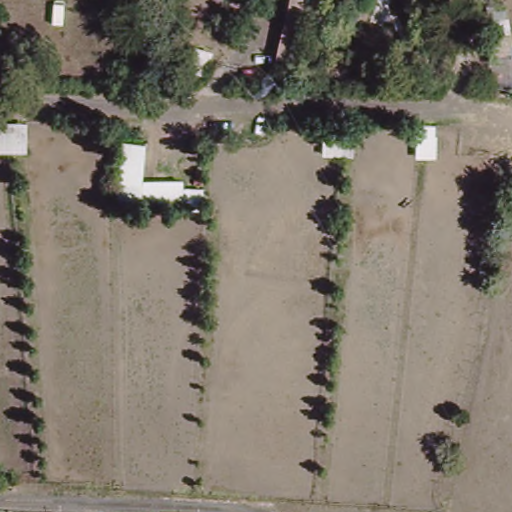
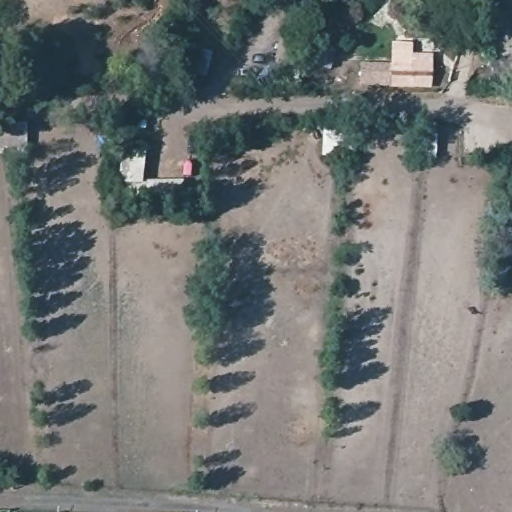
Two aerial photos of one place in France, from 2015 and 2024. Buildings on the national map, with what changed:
new [(512,35),(512,41),(512,85),(497,85),(493,36),(512,35)]
new [(391,62),(392,40),(414,41),(414,53),(433,53),(432,88),(390,86),(360,84),(361,62),(391,62)]
unchanged [(192,73),(196,49),(213,52),(208,76),(192,73)]

